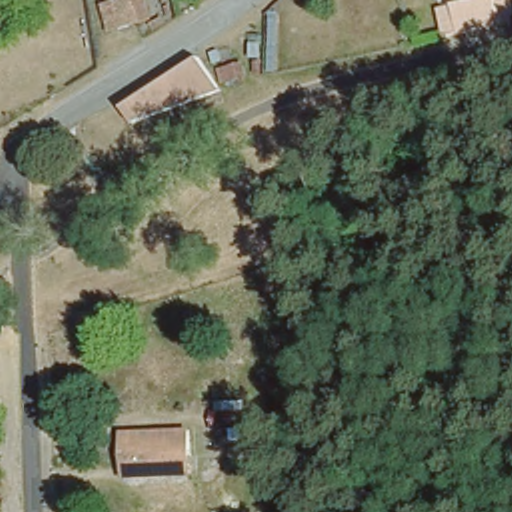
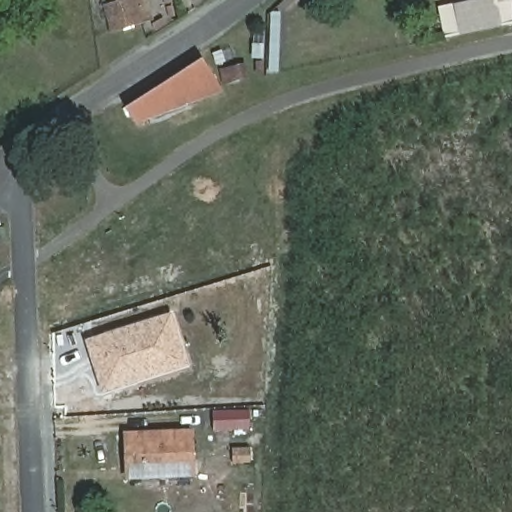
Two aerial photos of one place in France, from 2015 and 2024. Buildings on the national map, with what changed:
unchanged [(149,0),(151,19),(109,29),(102,1),(105,0),(149,0)]
unchanged [(497,19),(496,16),(448,25),(447,8),(482,0),(512,0),(512,14),(497,19)]
unchanged [(225,63),(214,66),(210,53),(222,50),(225,63)]
unchanged [(224,91),(135,124),(124,107),(202,57),(224,91)]
unchanged [(250,78),(248,78),(248,82),(226,86),(217,69),(246,64),(250,78)]
new [(103,390),(99,385),(88,349),(89,343),(173,316),(188,364),(124,384),(103,390)]
unchanged [(245,399),(245,426),(259,426),(258,441),(248,440),(247,459),(229,458),(229,441),(213,441),(210,400),(245,399)]
unchanged [(139,466),(138,443),(121,444),(120,434),(185,428),(189,461),(139,466)]
unchanged [(189,471),(124,477),(121,444),(138,443),(139,466),(189,461),(189,471)]

